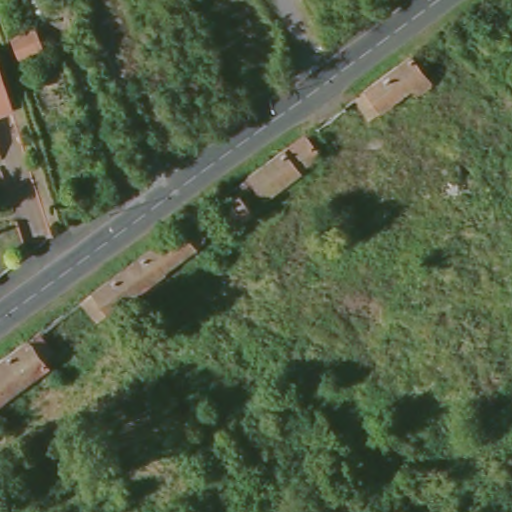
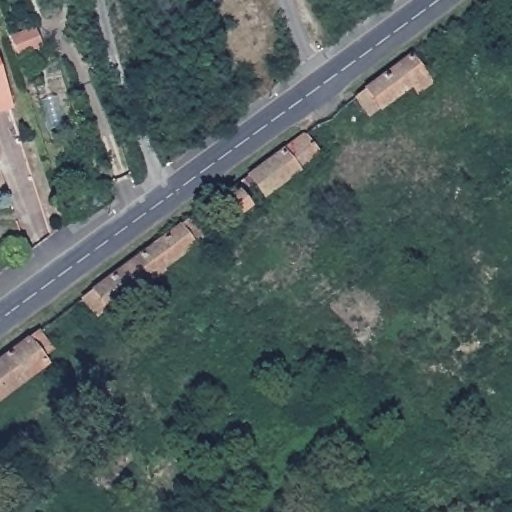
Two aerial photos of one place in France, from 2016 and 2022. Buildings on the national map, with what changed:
unchanged [(40,51),(13,60),(5,34),(31,26),(40,51)]
unchanged [(406,62),(425,88),(412,98),(407,92),(376,114),(361,94),(406,62)]
unchanged [(8,98),(10,107),(0,110),(0,76),(8,98)]
unchanged [(299,139),(314,159),(294,173),(296,175),(261,201),(244,180),(299,139)]
unchanged [(221,208),(233,199),(244,213),(231,223),(221,208)]
unchanged [(191,219),(205,238),(107,310),(99,300),(88,308),(81,300),(191,219)]
unchanged [(45,327),(51,334),(45,339),(34,348),(41,358),(46,364),(40,369),(0,399),(0,360),(45,327)]
unchanged [(209,498),(218,509),(213,512),(200,512),(196,508),(209,498)]

